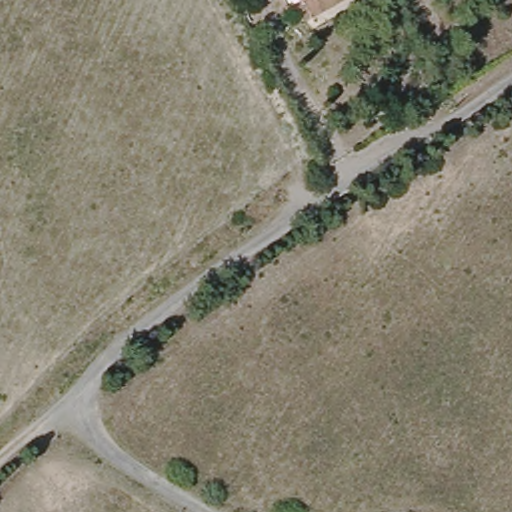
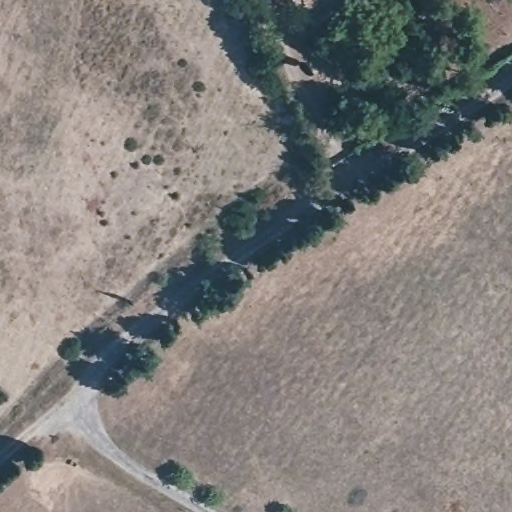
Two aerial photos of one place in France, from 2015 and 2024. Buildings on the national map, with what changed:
unchanged [(305,0),(340,0),(314,15),(305,0)]

